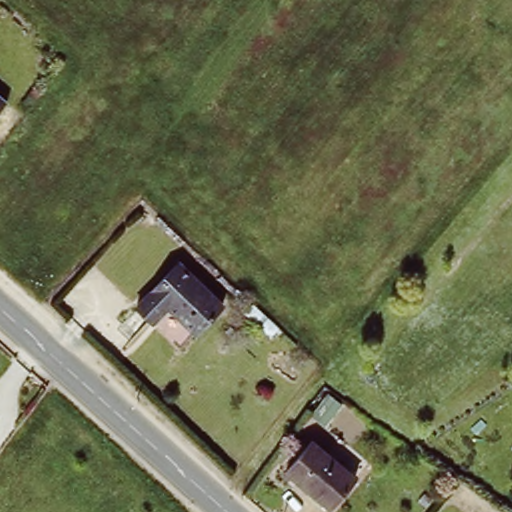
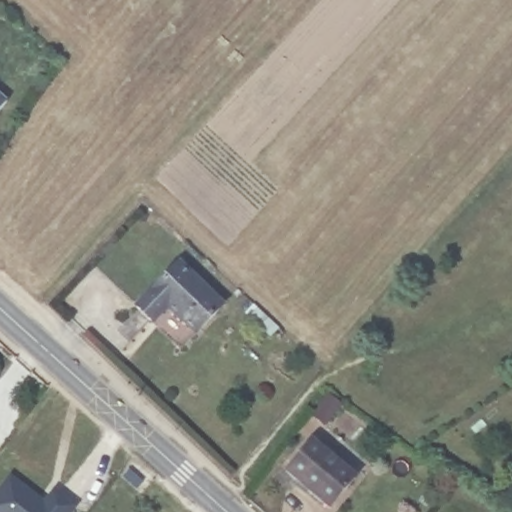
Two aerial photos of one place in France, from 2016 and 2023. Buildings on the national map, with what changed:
unchanged [(10,102),(0,114),(0,93),(10,102)]
unchanged [(136,307),(176,259),(224,298),(185,347),(136,307)]
unchanged [(284,466),(313,434),(357,473),(328,505),(284,466)]
new [(10,476),(39,498),(44,502),(55,490),(76,506),(71,512),(0,512),(0,489),(10,476)]

